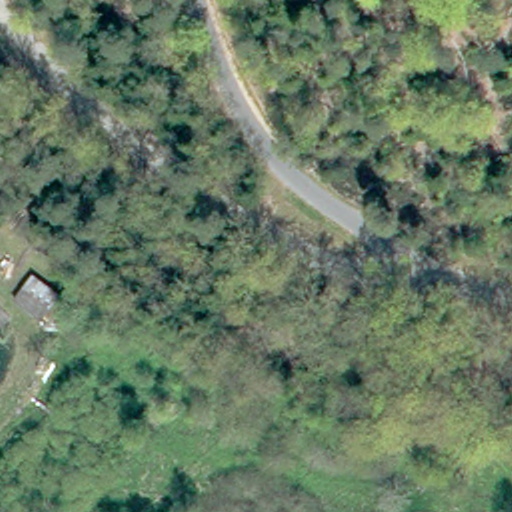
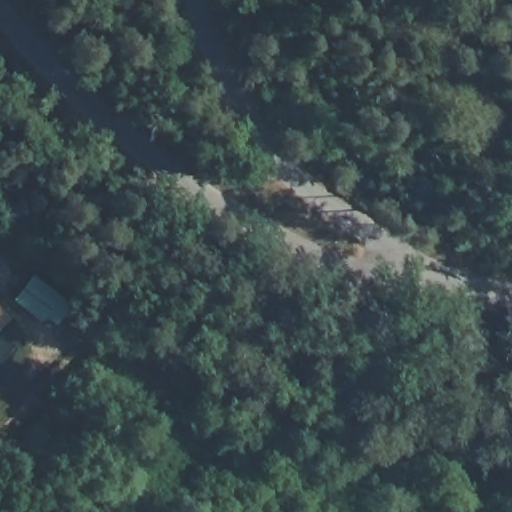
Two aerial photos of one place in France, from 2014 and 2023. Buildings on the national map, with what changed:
unchanged [(33,283),(55,304),(43,317),(20,295),(33,283)]

